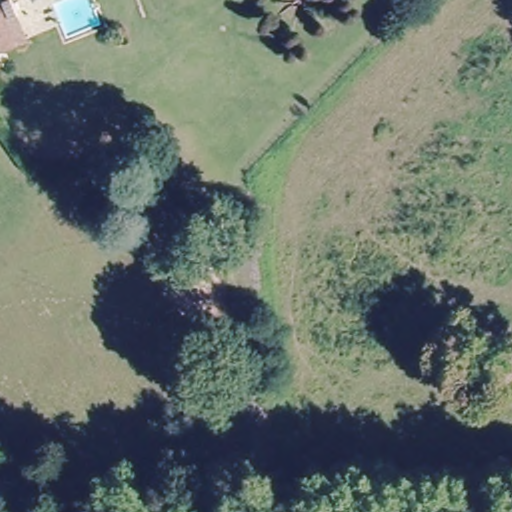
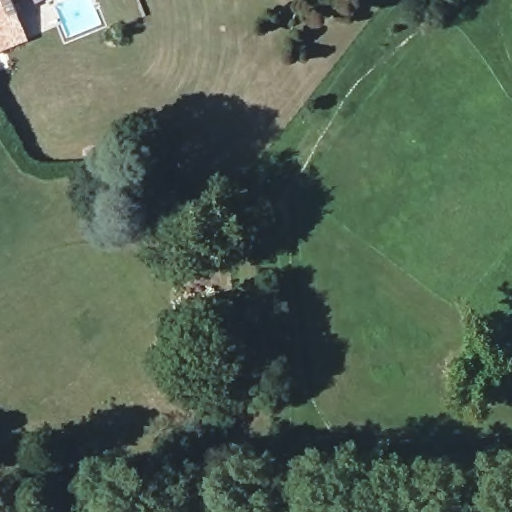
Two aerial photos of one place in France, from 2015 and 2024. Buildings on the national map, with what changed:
unchanged [(9,0),(25,33),(0,44),(0,0),(9,0)]

